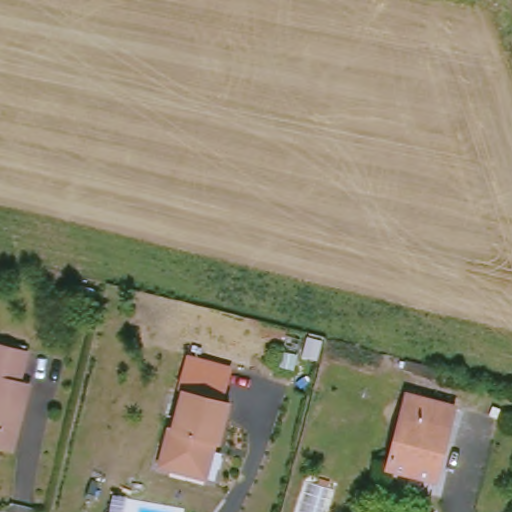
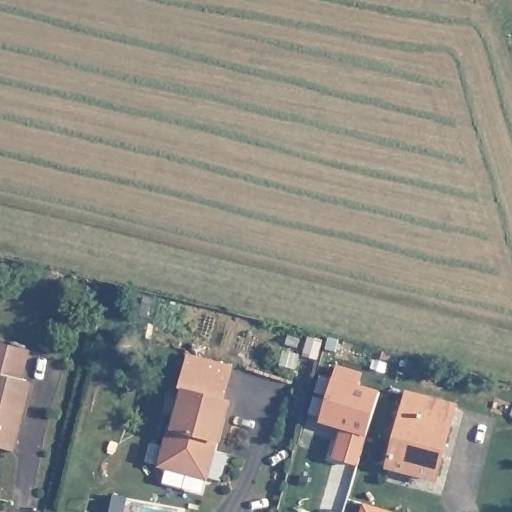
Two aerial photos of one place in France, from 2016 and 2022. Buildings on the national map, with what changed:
unchanged [(28,352),(21,383),(29,384),(13,453),(0,449),(0,346),(28,352)]
unchanged [(219,443),(213,442),(205,477),(155,466),(166,423),(171,425),(180,388),(177,386),(186,352),(232,364),(222,398),(230,401),(219,443)]
new [(341,428),(320,422),(333,376),(336,364),(363,373),(359,385),(380,391),(367,433),(357,466),(332,457),(341,428)]
unchanged [(457,404),(438,480),(393,467),(412,392),(457,404)]
new [(363,502),(399,512),(361,512),(363,502)]

